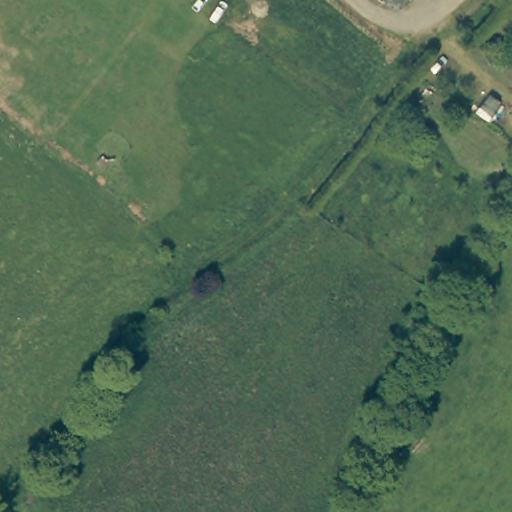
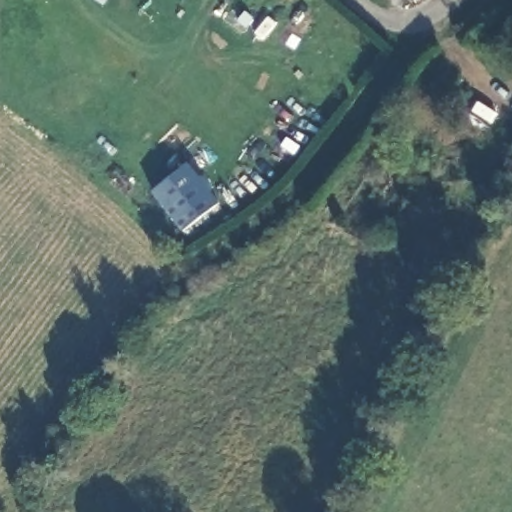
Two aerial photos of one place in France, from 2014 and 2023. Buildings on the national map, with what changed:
unchanged [(404,3),(400,0),(407,0),(404,3)]
new [(192,166),(223,206),(188,235),(157,195),(192,166)]

